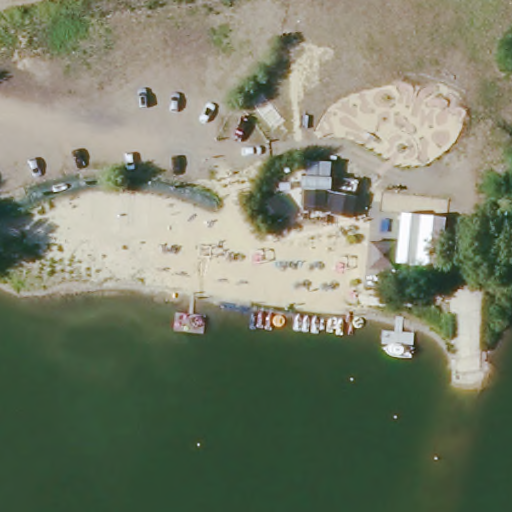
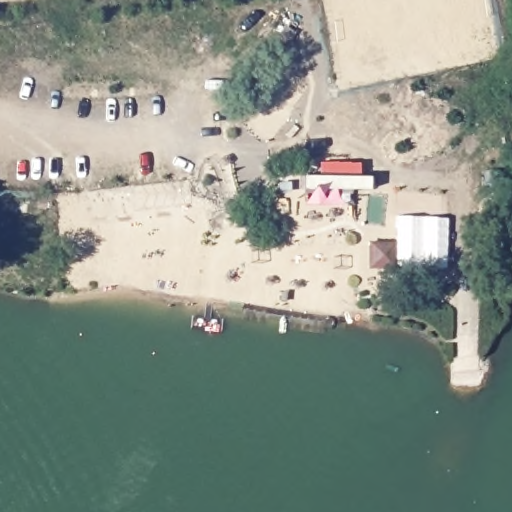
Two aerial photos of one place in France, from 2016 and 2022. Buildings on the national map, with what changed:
unchanged [(405,249),(402,275),(368,273),(370,246),(405,249)]

